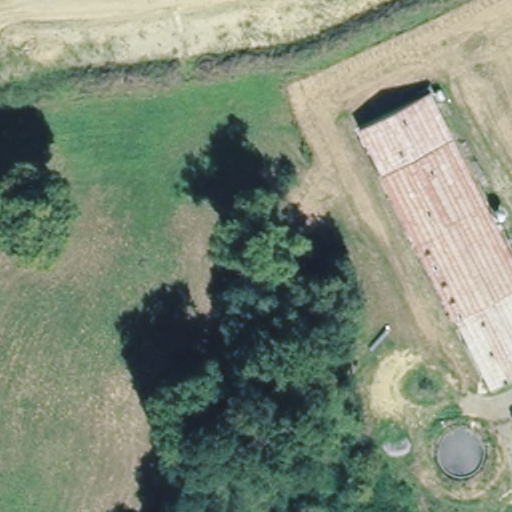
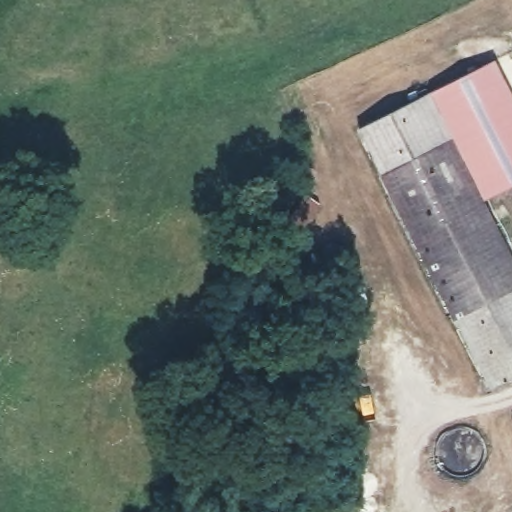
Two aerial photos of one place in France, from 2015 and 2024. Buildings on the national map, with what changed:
new [(512,185),(482,200),(427,94),(495,59),(512,92),(512,185)]
unchanged [(357,124),(425,89),(512,260),(512,373),(491,384),(357,124)]

